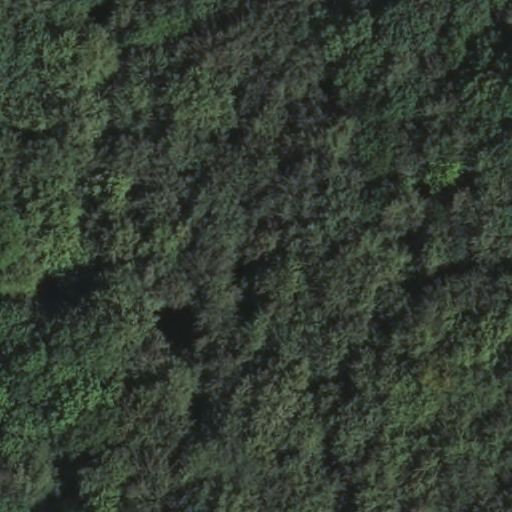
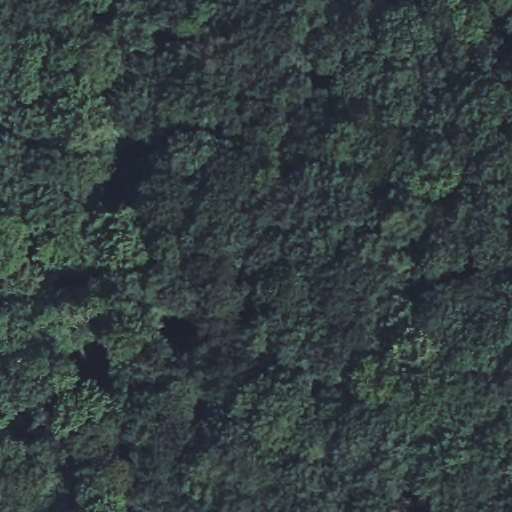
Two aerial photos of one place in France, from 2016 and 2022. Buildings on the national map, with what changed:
[]

